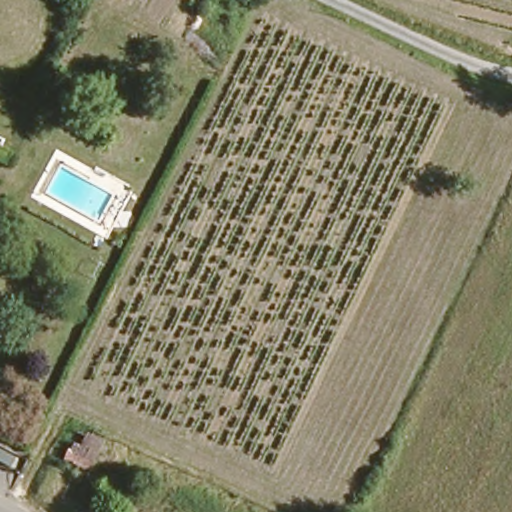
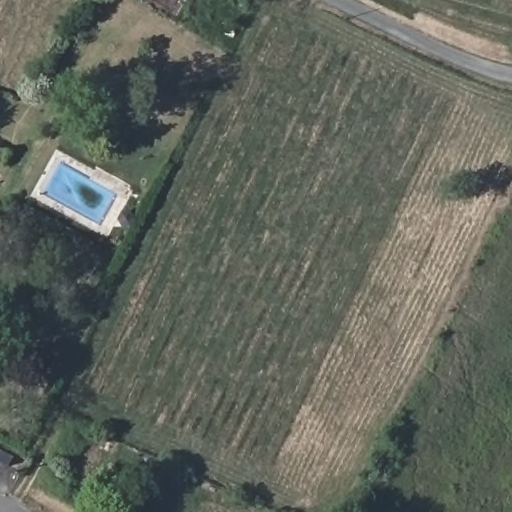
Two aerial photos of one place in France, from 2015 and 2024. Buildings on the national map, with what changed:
unchanged [(13,155),(8,163),(0,159),(0,148),(13,155)]

